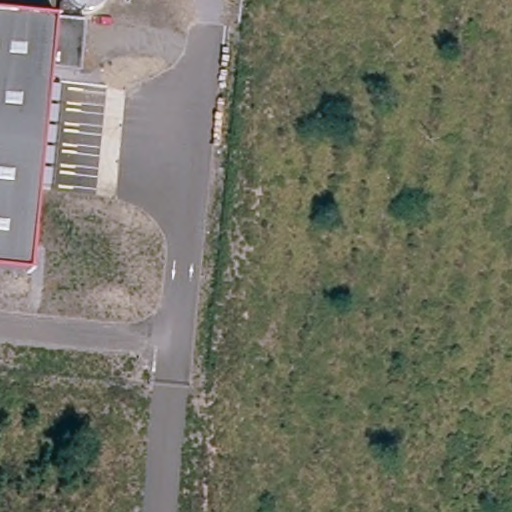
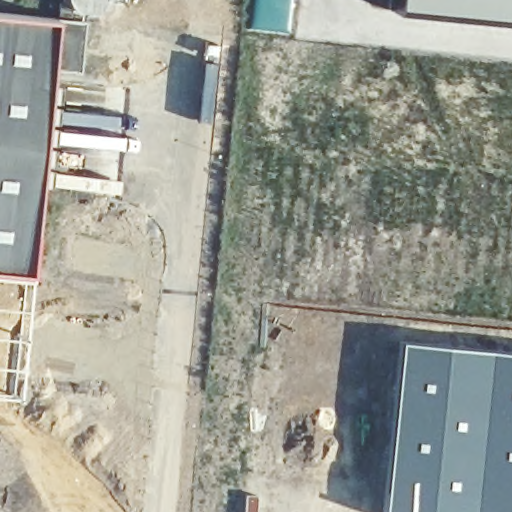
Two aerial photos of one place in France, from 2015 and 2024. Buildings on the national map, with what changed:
new [(391,9),(393,0),(512,0),(512,23),(475,20),(391,9)]
unchanged [(27,273),(0,270),(0,12),(53,17),(47,69),(27,273)]
unchanged [(84,21),(79,72),(47,69),(53,17),(84,21)]
new [(512,351),(512,512),(381,512),(398,339),(512,351)]

